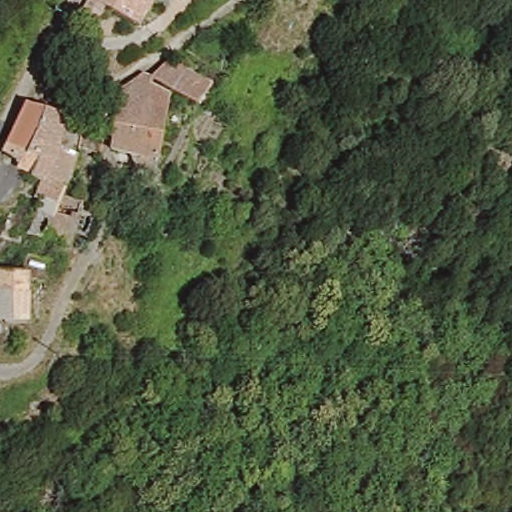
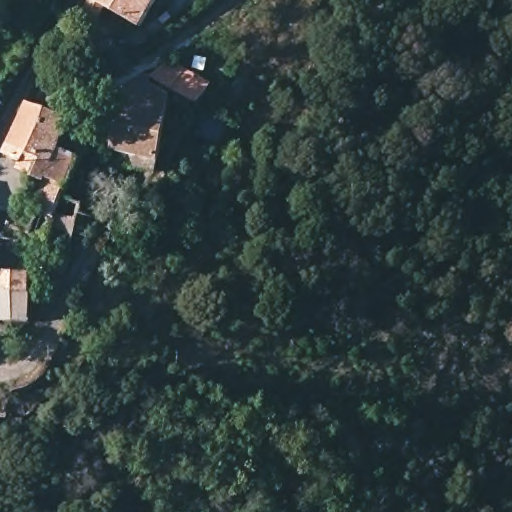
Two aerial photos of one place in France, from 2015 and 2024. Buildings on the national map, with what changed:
unchanged [(151,0),(135,26),(91,1),(92,0),(151,0)]
unchanged [(165,60),(168,61),(208,85),(196,104),(154,79),(159,68),(165,60)]
unchanged [(71,113),(75,95),(98,98),(95,117),(98,118),(95,137),(67,130),(69,121),(71,113)]
unchanged [(115,145),(123,95),(126,95),(169,101),(157,155),(117,148),(115,145)]
unchanged [(16,229),(27,194),(41,168),(35,164),(41,157),(35,152),(30,158),(22,166),(0,155),(0,152),(22,108),(37,113),(57,121),(59,122),(57,126),(41,145),(60,152),(60,156),(42,202),(50,207),(79,225),(75,240),(74,243),(67,240),(64,247),(59,245),(55,257),(35,250),(40,238),(16,229)]
unchanged [(23,278),(27,323),(0,324),(0,272),(10,275),(23,278)]

